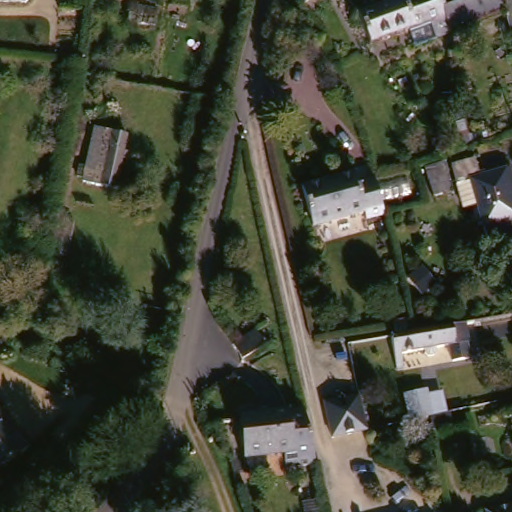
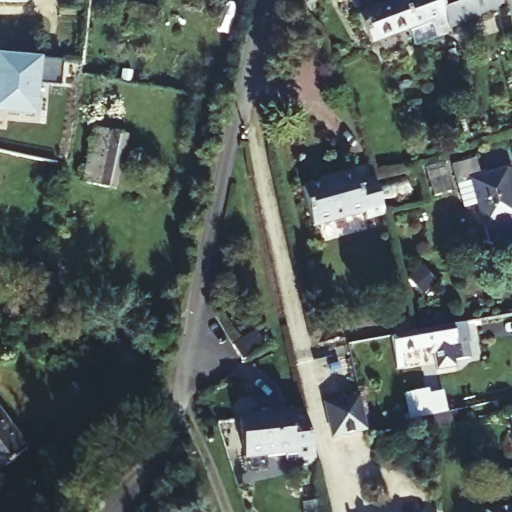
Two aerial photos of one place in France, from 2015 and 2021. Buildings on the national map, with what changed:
unchanged [(308,7),(304,0),(321,0),(308,7)]
unchanged [(416,30),(374,44),(358,15),(350,0),(374,0),(379,8),(404,0),(448,0),(451,5),(464,0),(508,0),(510,5),(455,28),(457,34),(445,37),(446,39),(422,46),(416,30)]
unchanged [(160,7),(157,24),(130,21),(132,3),(160,7)]
new [(61,58),(59,84),(34,82),(32,112),(0,110),(0,53),(61,58)]
unchanged [(96,179),(97,174),(92,173),(95,161),(99,162),(108,125),(140,132),(127,186),(96,179)]
unchanged [(512,171),(512,236),(500,238),(492,205),(479,208),(472,185),(467,164),(491,158),(495,175),(512,171)]
unchanged [(457,162),(463,191),(448,195),(442,166),(457,162)]
unchanged [(311,186),(363,171),(366,180),(382,175),(392,211),(392,213),(375,218),(372,211),(321,224),(311,186)]
unchanged [(56,221),(71,225),(63,259),(57,257),(54,275),(44,273),(56,221)]
unchanged [(411,363),(407,350),(403,333),(415,330),(435,326),(438,326),(480,319),(482,337),(478,338),(482,353),(465,355),(462,341),(442,344),(441,343),(428,346),(412,349),(416,362),(411,363)]
unchanged [(258,345),(236,360),(226,345),(249,330),(258,345)]
unchanged [(417,418),(411,393),(430,389),(431,393),(447,390),(451,410),(436,414),(417,418)]
unchanged [(377,429),(342,436),(335,403),(370,396),(377,429)]
unchanged [(34,443),(0,470),(0,400),(34,443)]
unchanged [(251,471),(250,457),(245,414),(266,412),(265,401),(273,400),(275,411),(296,409),(296,411),(311,410),(323,464),(293,467),(292,453),(271,455),(272,469),(251,471)]
unchanged [(475,419),(453,424),(451,410),(472,406),(475,419)]
unchanged [(512,512),(497,512),(497,510),(512,507),(512,512)]

